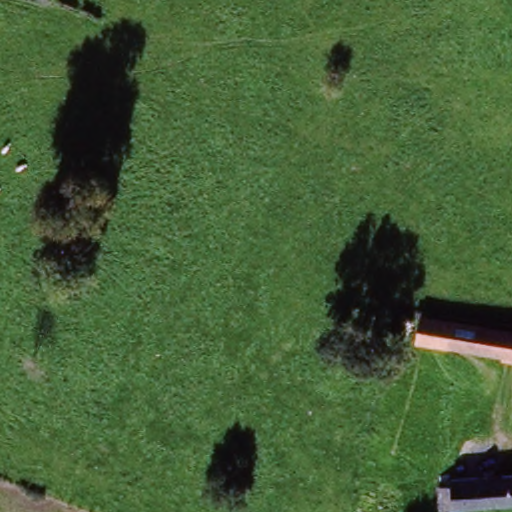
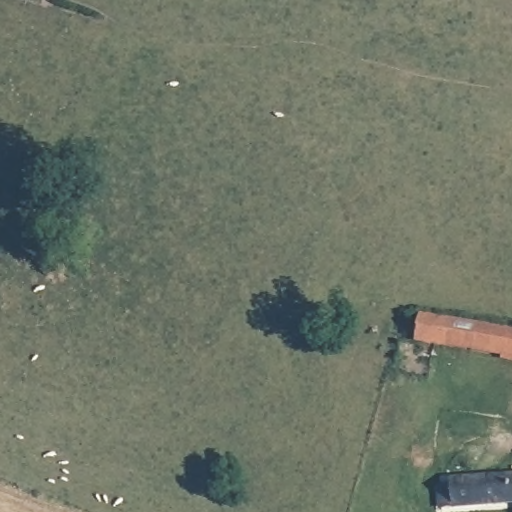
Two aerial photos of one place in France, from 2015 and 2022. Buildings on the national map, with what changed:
unchanged [(512,360),(413,344),(421,310),(512,326),(512,360)]
unchanged [(512,474),(512,507),(440,510),(437,485),(457,482),(456,476),(512,474)]

